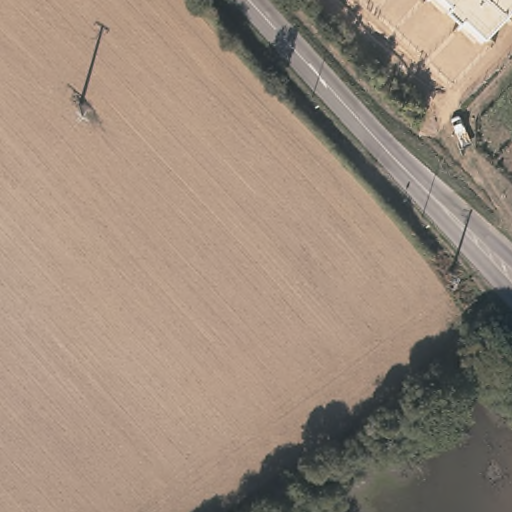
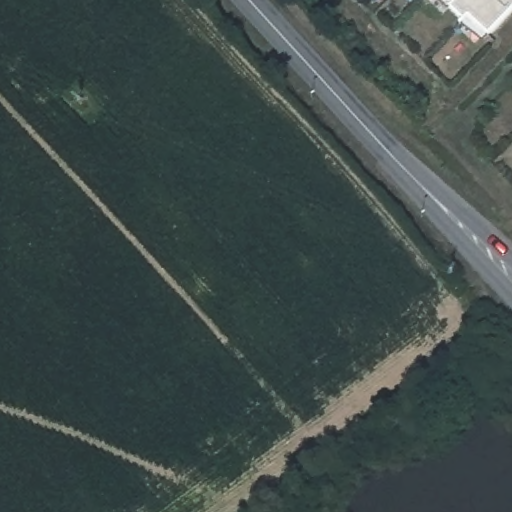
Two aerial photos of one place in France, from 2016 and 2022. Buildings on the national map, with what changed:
unchanged [(468,15),(463,20),(451,8),(455,3),(451,0),(512,0),(512,10),(488,34),(468,15)]

